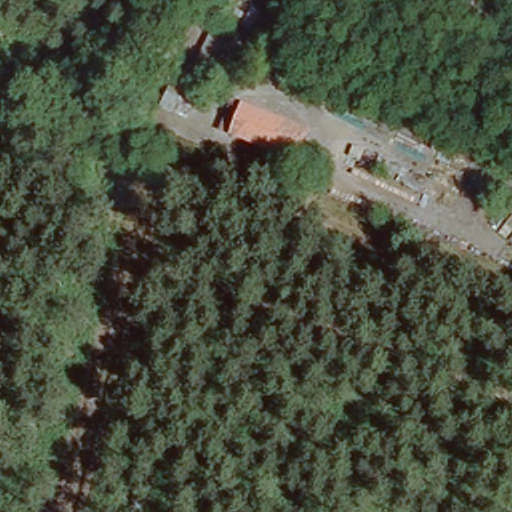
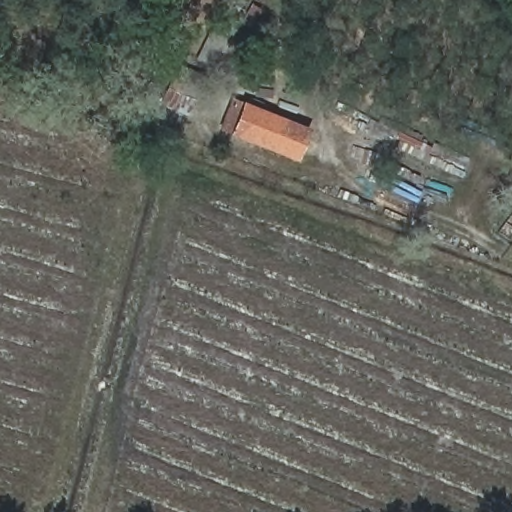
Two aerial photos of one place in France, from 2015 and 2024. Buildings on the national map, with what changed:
unchanged [(292,158),(229,130),(243,100),(309,127),(292,158)]

